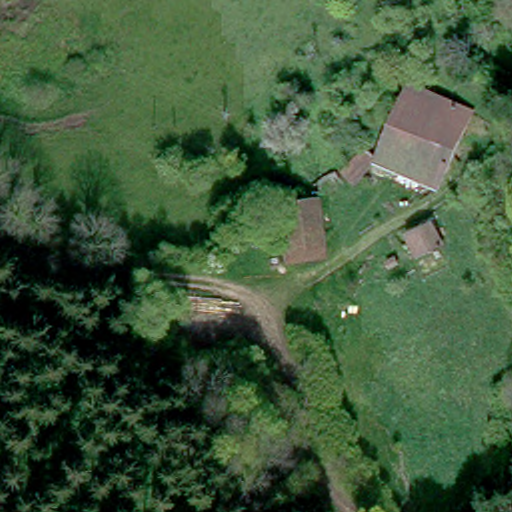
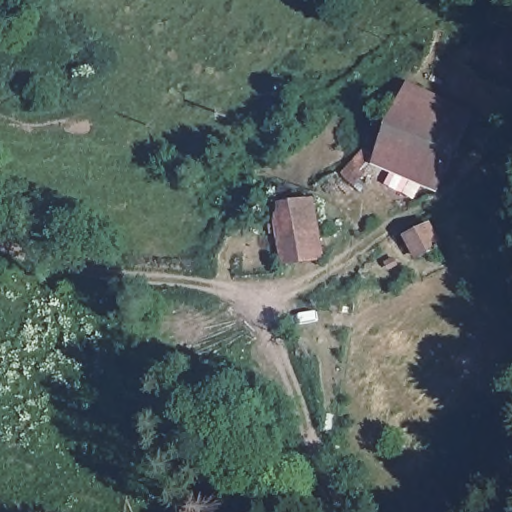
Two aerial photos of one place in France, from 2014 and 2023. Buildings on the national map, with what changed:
unchanged [(468,114),(436,191),(372,160),(403,84),(468,114)]
unchanged [(335,176),(356,152),(372,160),(347,192),(331,180),(335,176)]
unchanged [(321,248),(284,262),(279,211),(268,212),(266,197),(313,189),(321,248)]
unchanged [(439,243),(414,256),(402,232),(428,219),(439,243)]

